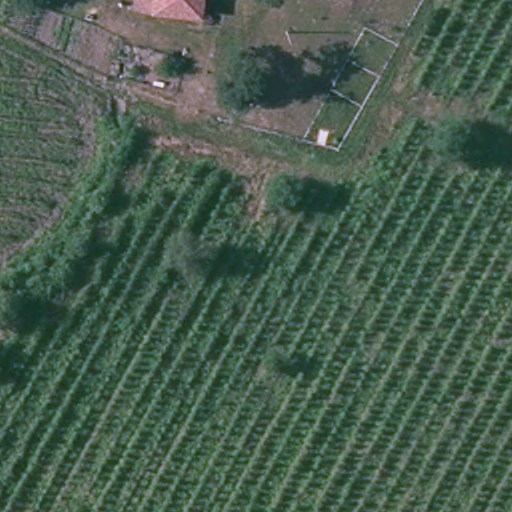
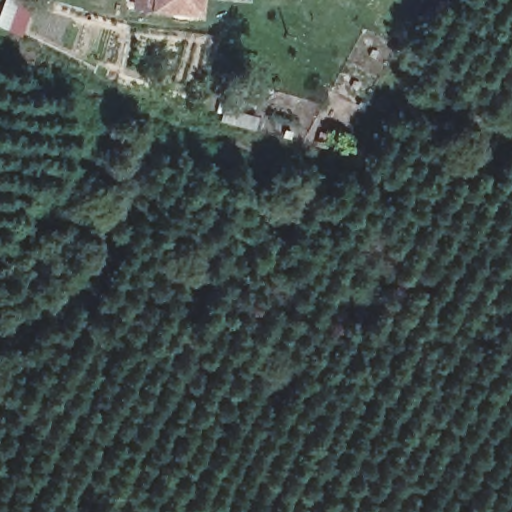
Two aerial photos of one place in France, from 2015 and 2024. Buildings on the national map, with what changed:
unchanged [(143,0),(188,0),(187,9),(143,2),(143,0)]

